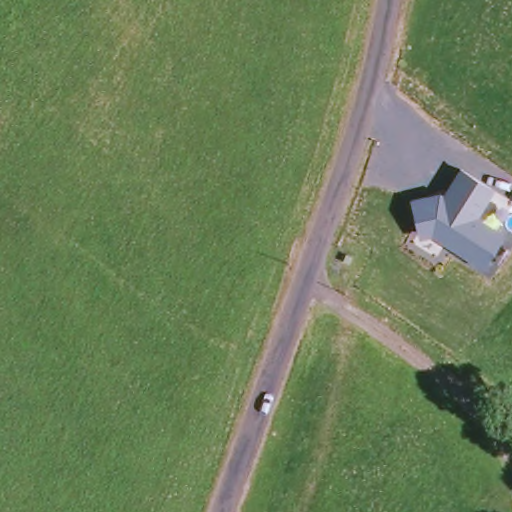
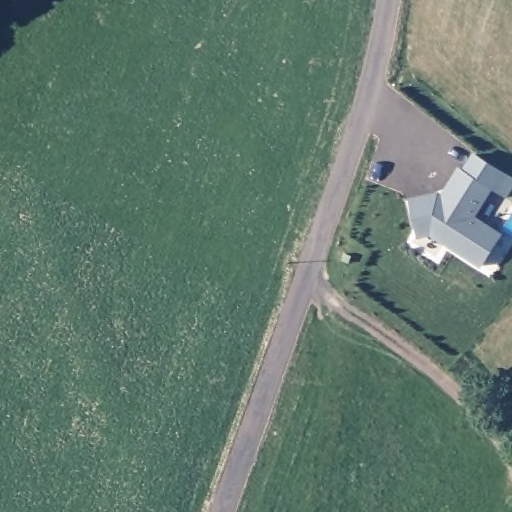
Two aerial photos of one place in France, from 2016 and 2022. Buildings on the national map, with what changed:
unchanged [(493,189),(478,216),(505,233),(482,267),(432,234),(420,235),(410,197),(438,191),(443,193),(459,168),(493,189)]

